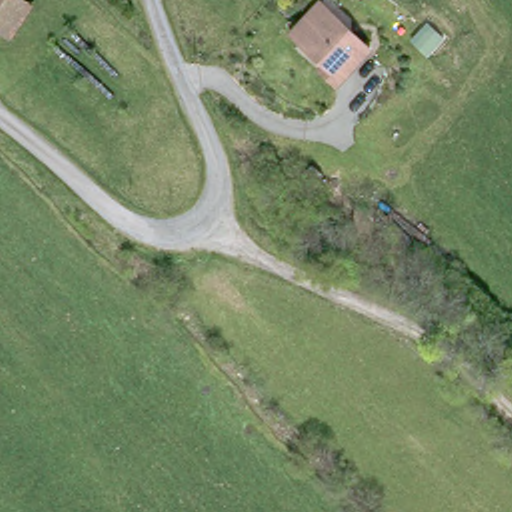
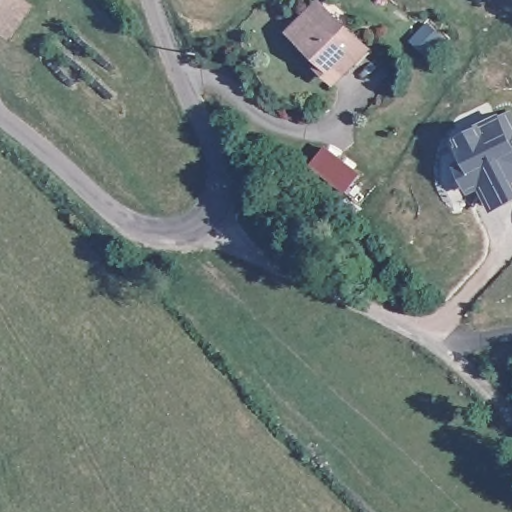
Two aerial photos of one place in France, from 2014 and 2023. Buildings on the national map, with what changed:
unchanged [(16,0),(28,9),(3,39),(0,36),(0,0),(16,0)]
unchanged [(297,35),(321,9),(369,52),(339,82),(327,71),(293,39),(297,35)]
new [(456,140),(501,112),(504,116),(512,110),(512,202),(494,214),(483,189),(473,194),(457,164),(467,162),(456,140)]
new [(327,150),(360,176),(347,192),(314,167),(327,150)]

